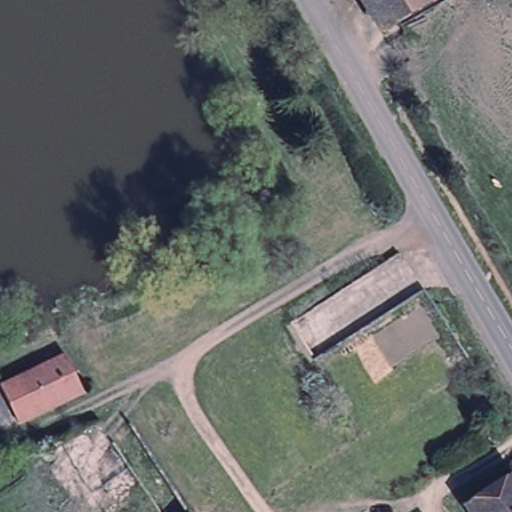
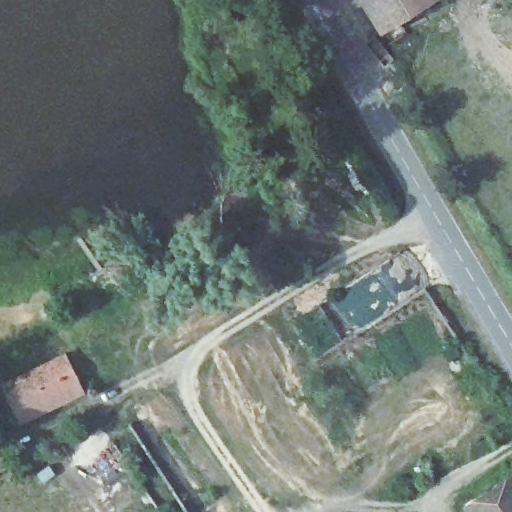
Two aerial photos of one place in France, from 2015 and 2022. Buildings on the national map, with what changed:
unchanged [(365,0),(438,0),(383,30),(365,0)]
unchanged [(83,390),(20,422),(1,386),(64,354),(83,390)]
unchanged [(130,430),(187,512),(159,512),(108,442),(130,430)]
unchanged [(508,474),(512,480),(512,512),(466,512),(461,505),(508,474)]

